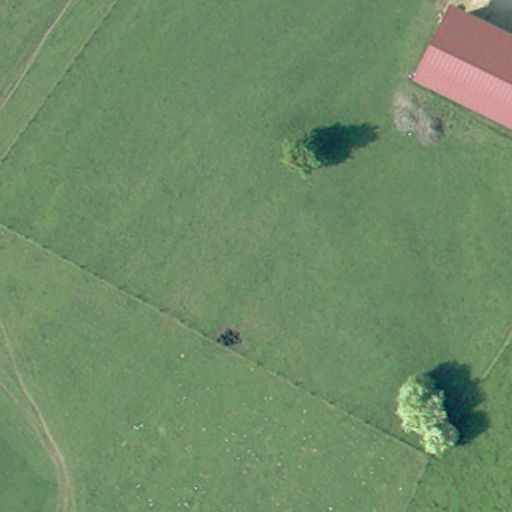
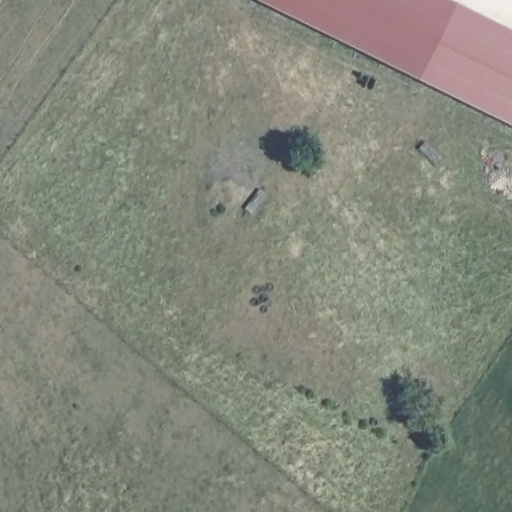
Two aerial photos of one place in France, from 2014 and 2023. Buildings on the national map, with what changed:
new [(257,0),(450,0),(412,77),(257,0)]
unchanged [(512,126),(412,77),(450,0),(512,30),(512,126)]

